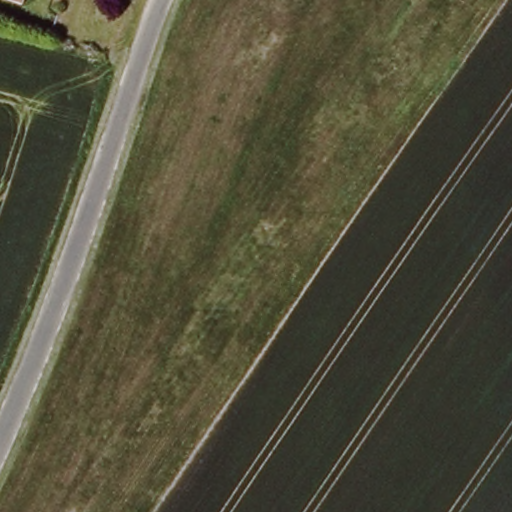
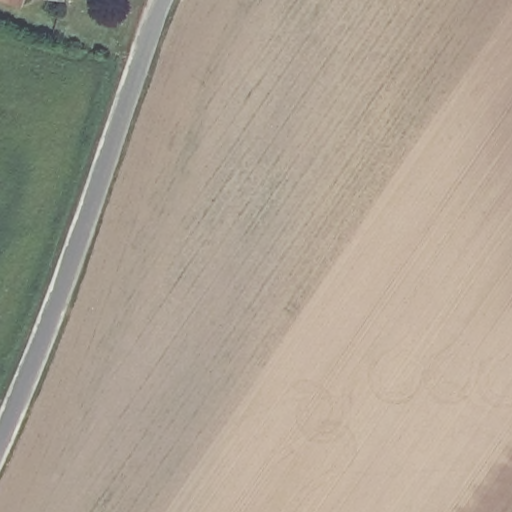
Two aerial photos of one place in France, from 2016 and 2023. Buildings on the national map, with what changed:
unchanged [(13,0),(31,0),(29,5),(13,0)]
unchanged [(66,0),(65,4),(53,0),(66,0)]

